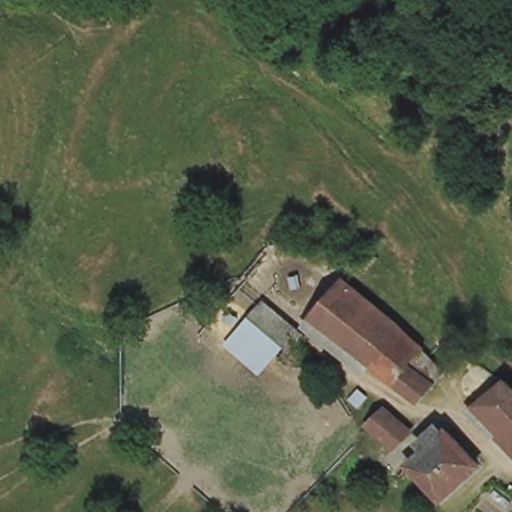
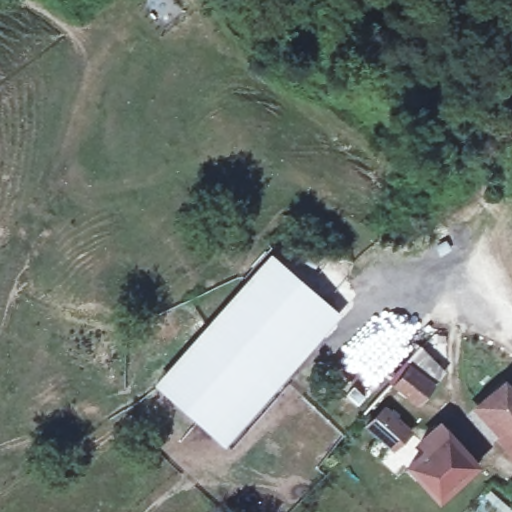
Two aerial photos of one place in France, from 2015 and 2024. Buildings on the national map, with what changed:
new [(270,251),(340,314),(224,445),(154,382),(270,251)]
demolished [(418,352),(390,386),(319,329),(347,295),(418,352)]
demolished [(224,343),(264,296),(310,338),(288,361),(281,354),(258,374),(224,343)]
unchanged [(438,369),(410,403),(390,386),(418,352),(438,369)]
unchanged [(468,412),(491,387),(512,407),(512,451),(468,412)]
unchanged [(401,439),(388,452),(363,428),(376,414),(401,439)]
unchanged [(436,434),(439,431),(475,467),(440,503),(404,466),(419,452),(411,442),(427,426),(436,434)]

